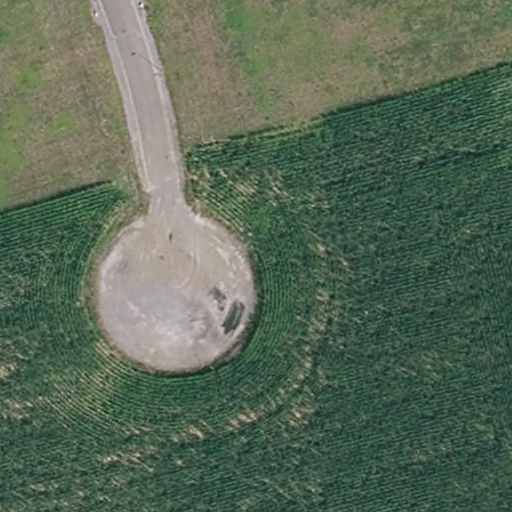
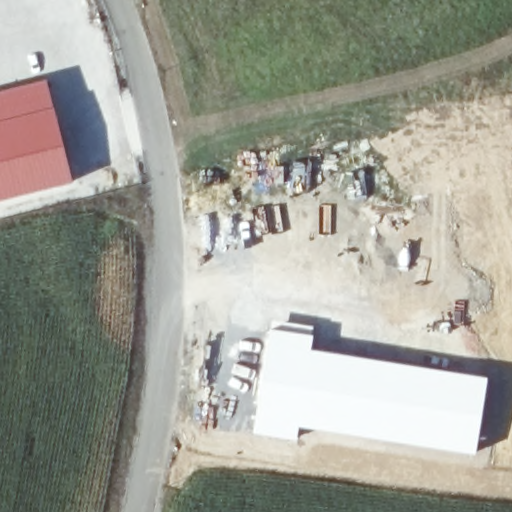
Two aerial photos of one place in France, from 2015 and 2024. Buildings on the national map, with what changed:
new [(45,79),(59,126),(72,181),(0,201),(0,91),(45,79)]
new [(257,386),(269,325),(314,332),(312,347),(488,376),(475,454),(298,427),(296,441),(251,434),(257,386)]

